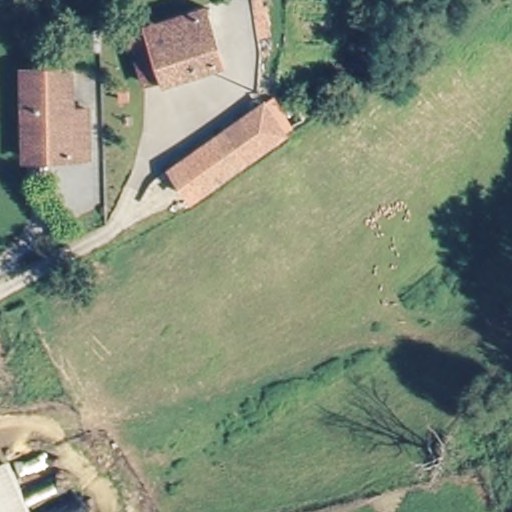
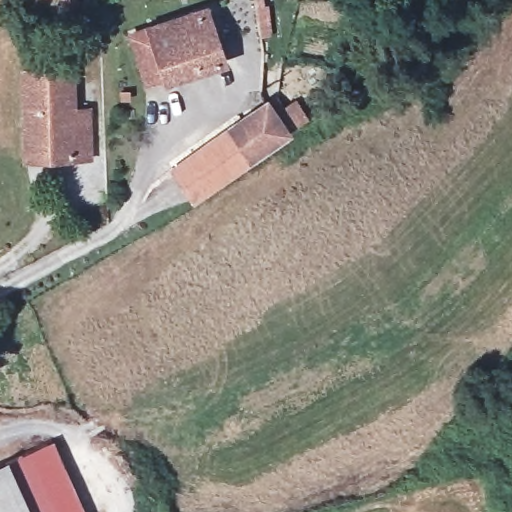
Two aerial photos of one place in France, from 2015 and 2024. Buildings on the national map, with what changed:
unchanged [(135,35),(205,18),(220,62),(152,83),(135,35)]
unchanged [(28,157),(26,67),(71,67),(74,116),(88,116),(89,143),(89,153),(90,166),(73,167),(29,167),(28,157)]
unchanged [(286,137),(270,148),(190,199),(172,170),(265,109),(268,108),(286,137)]
new [(36,512),(10,455),(54,440),(86,512),(36,512)]
unchanged [(0,512),(0,459),(10,455),(36,512),(0,512)]

